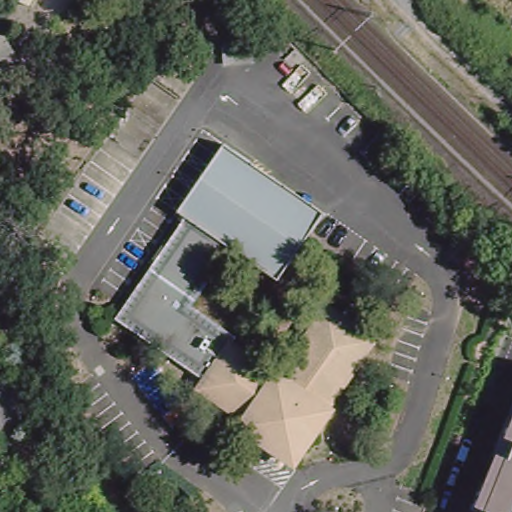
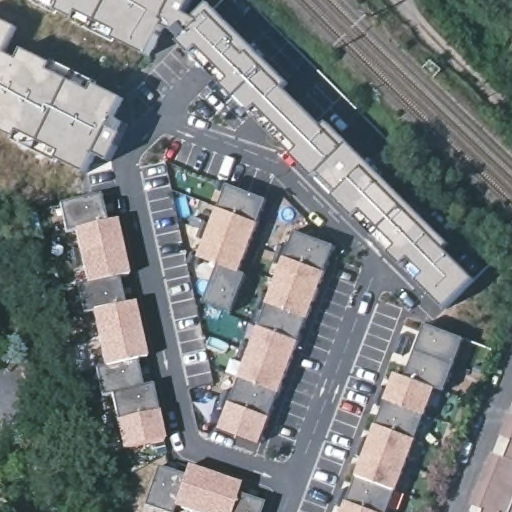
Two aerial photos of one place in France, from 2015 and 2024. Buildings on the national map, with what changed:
demolished [(30,5),(20,0),(32,0),(30,5)]
new [(182,40),(163,25),(148,54),(37,0),(190,0),(184,13),(197,19),(213,2),(289,83),(282,89),(325,131),(331,125),(450,244),(445,249),(474,280),(447,307),(182,40)]
new [(0,44),(0,17),(11,22),(0,44)]
new [(8,131),(0,127),(0,48),(12,53),(17,43),(44,57),(46,54),(91,76),(89,79),(117,93),(107,113),(117,117),(122,120),(105,156),(90,148),(80,167),(52,153),(51,156),(6,134),(8,131)]
demolished [(281,378),(330,309),(375,340),(329,408),(332,411),(296,462),(270,444),(274,437),(248,419),(203,386),(207,380),(117,317),(186,216),(178,210),(224,143),(276,179),(261,199),(311,233),(280,279),(234,248),(194,307),(237,337),(233,344),(281,378)]
new [(224,240),(234,215),(243,191),(269,201),(260,225),(250,250),(240,274),(215,264),(224,240)]
new [(101,194),(107,222),(118,221),(130,274),(118,277),(124,304),(134,302),(145,355),(136,358),(144,383),(152,381),(168,436),(123,448),(109,398),(104,398),(96,370),(106,367),(93,312),(84,315),(78,284),(86,283),(73,230),(65,232),(60,204),(101,194)]
new [(270,304),(279,282),(287,259),(298,233),(336,247),(326,274),(317,296),(308,319),(300,342),(261,327),(270,304)]
new [(233,271),(240,274),(241,272),(248,275),(233,314),(219,309),(233,271)]
new [(417,321),(473,343),(463,369),(407,348),(417,321)]
new [(252,353),(261,327),(300,342),(290,368),(252,353)]
new [(407,348),(463,369),(453,396),(444,392),(397,374),(407,348)]
new [(242,378),(252,353),(290,368),(280,393),(242,378)]
new [(387,370),(397,374),(444,392),(434,418),(377,397),(387,370)]
new [(232,403),(242,378),(280,393),(270,418),(232,403)]
new [(377,397),(434,418),(424,443),(368,422),(377,397)]
new [(270,418),(260,444),(222,429),(232,403),(270,418)]
unchanged [(505,438),(512,420),(512,441),(505,438)]
new [(368,422),(424,443),(414,469),(358,447),(368,422)]
new [(358,447),(414,469),(404,494),(348,472),(358,447)]
unchanged [(476,506),(497,453),(509,458),(512,450),(512,512),(488,512),(488,511),(476,506)]
new [(188,467),(214,477),(202,512),(188,512),(175,507),(185,477),(188,467)]
new [(185,477),(175,507),(173,512),(156,512),(146,508),(160,468),(185,477)]
new [(404,494),(397,512),(375,512),(339,498),(348,472),(404,494)]
new [(241,486),(237,495),(231,512),(202,512),(214,477),(241,486)]
new [(264,504),(261,512),(231,512),(237,495),(264,504)]
new [(375,512),(333,512),(339,498),(375,512)]

